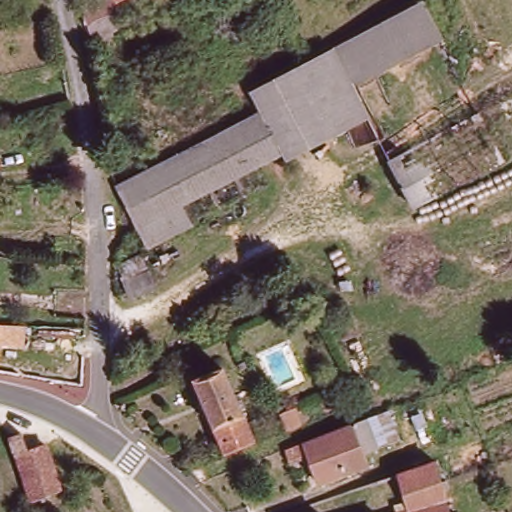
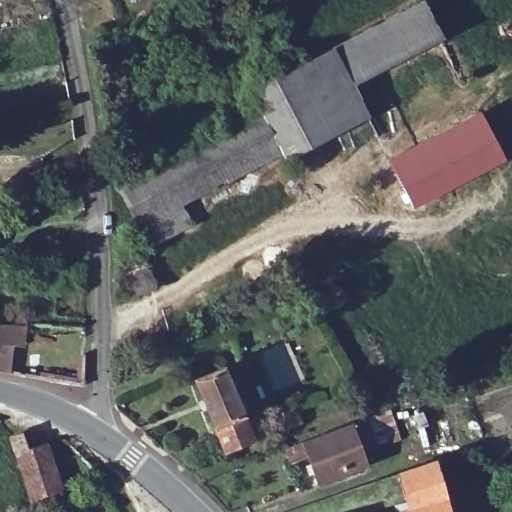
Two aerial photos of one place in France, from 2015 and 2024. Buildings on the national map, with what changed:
unchanged [(115,13),(111,17),(116,30),(109,35),(107,42),(88,46),(80,8),(99,0),(123,0),(112,8),(115,13)]
unchanged [(128,0),(136,0),(130,3),(128,0)]
unchanged [(434,45),(346,91),(329,54),(415,9),(434,45)]
unchanged [(362,122),(280,164),(276,157),(257,119),(245,96),(329,54),(346,91),(362,122)]
new [(479,110),(506,159),(413,208),(387,158),(479,110)]
unchanged [(113,192),(257,119),(276,157),(249,170),(177,207),(132,229),(113,192)]
unchanged [(194,226),(145,252),(132,229),(177,207),(182,204),(194,226)]
unchanged [(141,256),(155,287),(132,300),(117,267),(141,256)]
unchanged [(21,346),(0,344),(0,330),(22,331),(21,346)]
unchanged [(194,383),(221,371),(254,447),(226,459),(194,383)]
unchanged [(298,423),(288,427),(282,411),(292,407),(298,423)]
unchanged [(313,485),(303,458),(285,465),(280,451),(346,430),(360,424),(370,450),(356,455),(361,467),(313,485)]
unchanged [(22,437),(27,454),(44,448),(59,495),(31,503),(11,442),(22,437)]
unchanged [(445,496),(408,508),(396,472),(435,459),(440,478),(445,496)]
unchanged [(408,508),(445,496),(448,512),(396,512),(408,508)]

